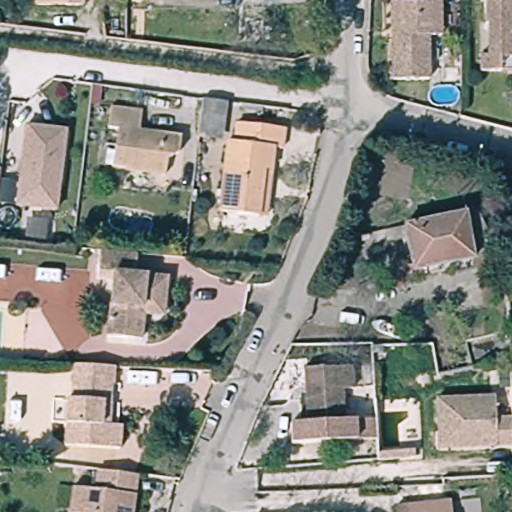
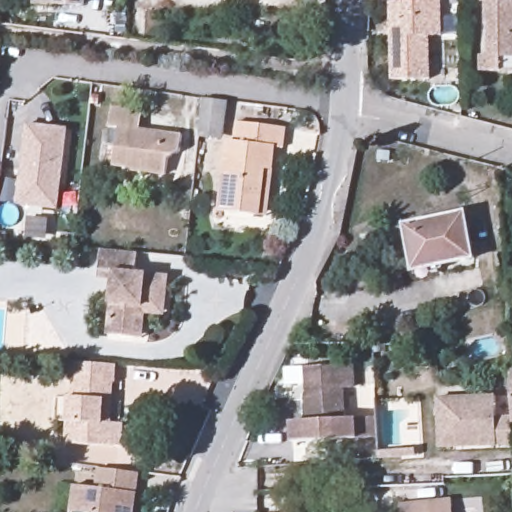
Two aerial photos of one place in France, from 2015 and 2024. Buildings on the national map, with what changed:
unchanged [(439,0),(439,7),(438,41),(431,41),(426,41),(426,82),(388,82),(388,40),(389,7),(398,7),(401,7),(401,0),(439,0)]
unchanged [(473,71),(473,55),(481,55),(481,22),(479,22),(479,0),(512,0),(512,71),(494,71),(473,71)]
unchanged [(226,102),(221,137),(198,135),(203,99),(226,102)]
unchanged [(138,126),(181,131),(179,149),(167,156),(165,170),(127,165),(127,163),(113,161),(118,124),(109,122),(111,104),(142,107),(138,126)]
unchanged [(280,149),(273,149),(265,217),(218,211),(228,142),(234,144),(237,124),(283,130),(280,149)]
unchanged [(18,205),(26,126),(65,131),(57,209),(18,205)]
unchanged [(408,267),(399,223),(458,210),(467,254),(408,267)]
unchanged [(144,313),(141,338),(135,338),(107,336),(112,280),(97,279),(99,250),(135,252),(134,274),(162,276),(160,308),(161,315),(144,313)]
unchanged [(121,446),(113,446),(65,445),(67,396),(71,396),(73,363),(115,365),(114,383),(112,382),(110,422),(114,422),(122,422),(121,446)]
unchanged [(380,422),(381,442),(295,445),(294,425),(311,424),(309,370),(357,368),(357,391),(348,391),(348,423),(380,422)]
unchanged [(512,368),(512,425),(511,420),(509,368),(512,368)]
unchanged [(438,435),(435,402),(491,400),(492,422),(511,420),(512,425),(512,449),(460,452),(438,453),(438,435)]
unchanged [(134,512),(71,512),(73,485),(80,485),(96,486),(98,468),(138,471),(134,512)]
unchanged [(395,502),(449,498),(450,512),(395,512),(395,502)]

